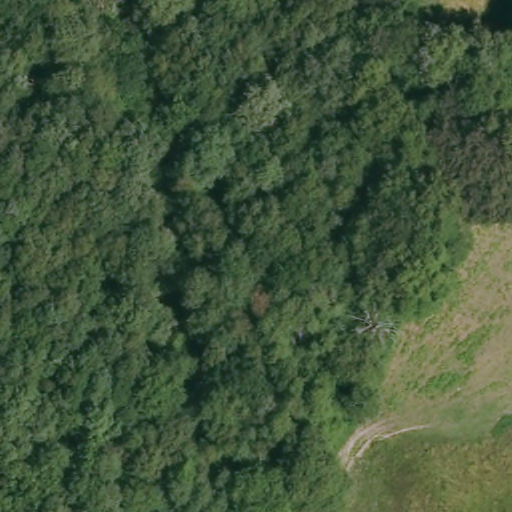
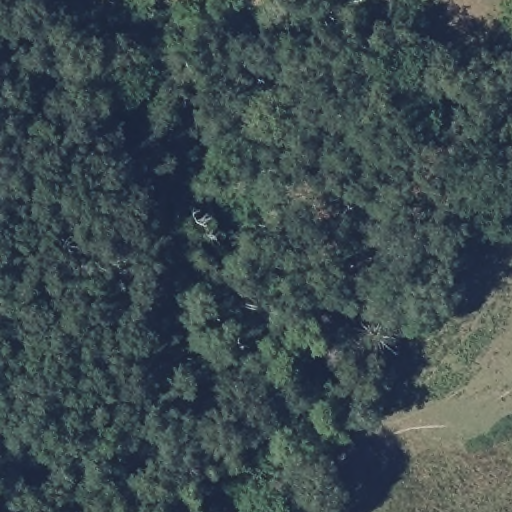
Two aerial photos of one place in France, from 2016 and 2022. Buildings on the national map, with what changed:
[]

